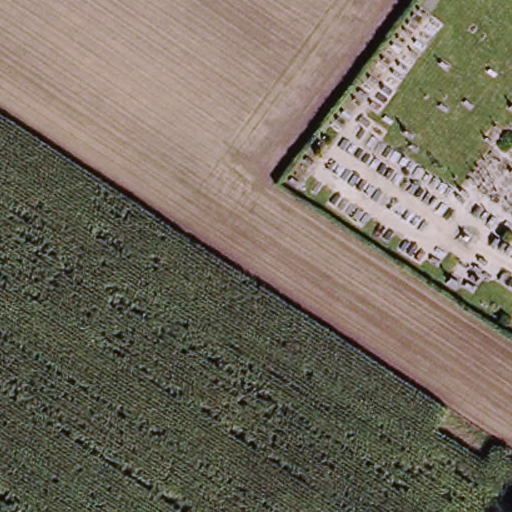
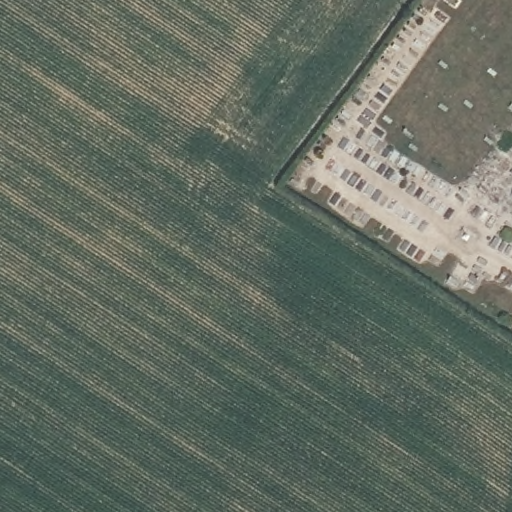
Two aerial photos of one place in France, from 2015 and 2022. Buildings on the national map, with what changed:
[]

